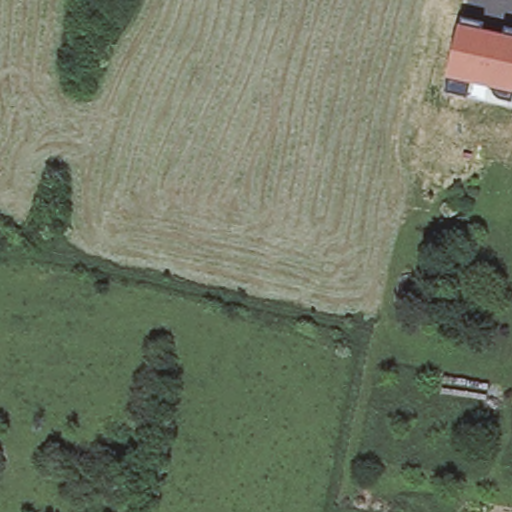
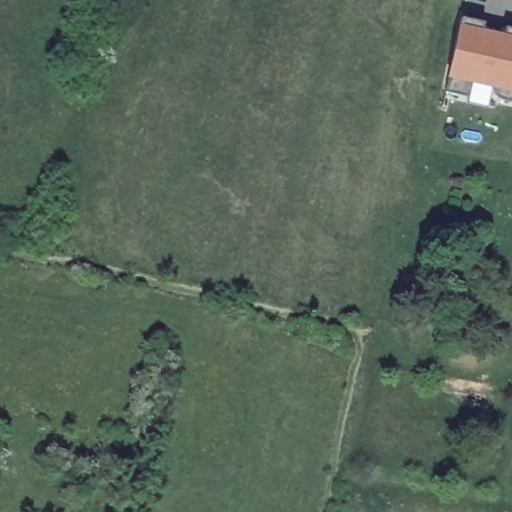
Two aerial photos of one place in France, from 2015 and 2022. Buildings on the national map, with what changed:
unchanged [(485,23),(483,31),(505,35),(506,28),(512,29),(512,102),(497,98),(492,88),(470,84),(467,97),(447,92),(450,78),(447,77),(459,25),(462,26),(463,19),(485,23)]

